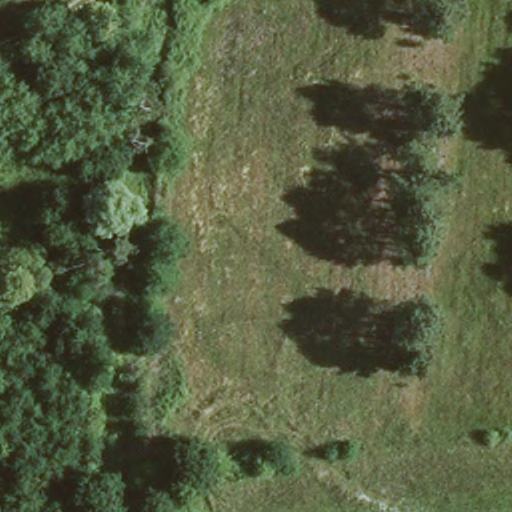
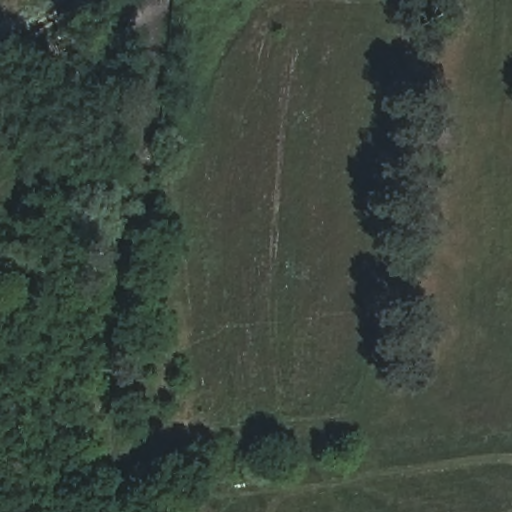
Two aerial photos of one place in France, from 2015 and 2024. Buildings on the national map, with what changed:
unchanged [(141,4),(137,0),(146,0),(141,4)]

